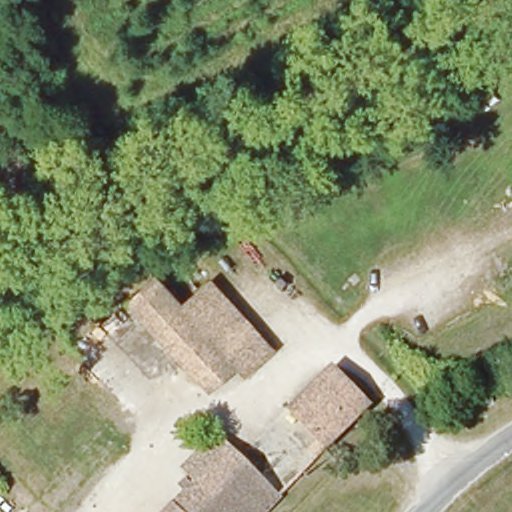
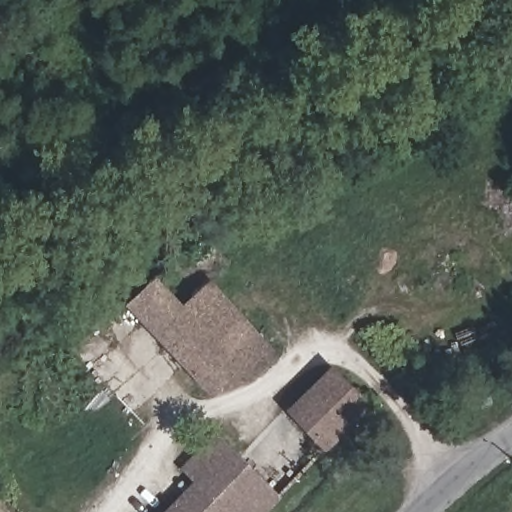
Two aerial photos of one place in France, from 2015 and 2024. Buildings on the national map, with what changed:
unchanged [(158,274),(185,304),(213,279),(279,353),(247,381),(239,370),(211,397),(126,305),(158,274)]
unchanged [(375,406),(327,452),(289,410),(333,365),(375,406)]
unchanged [(272,512),(163,512),(191,483),(180,470),(216,431),(284,499),(272,512)]

